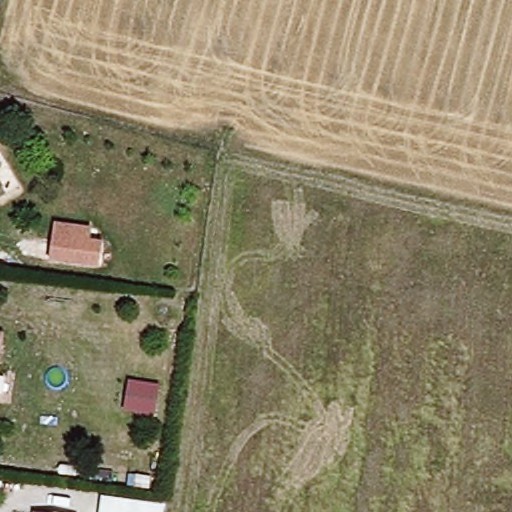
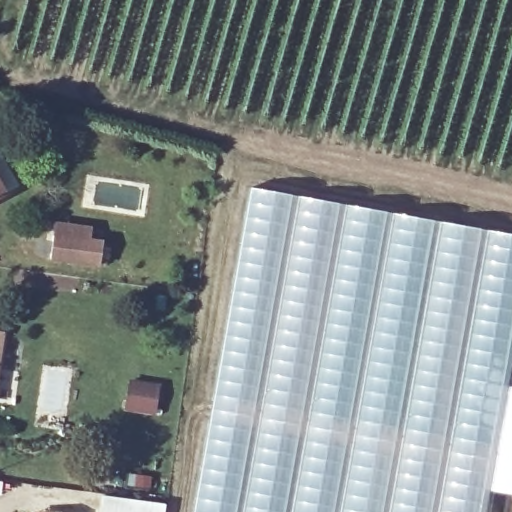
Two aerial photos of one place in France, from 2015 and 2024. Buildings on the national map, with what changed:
new [(248,187),(512,235),(512,363),(508,386),(512,386),(512,495),(490,491),(486,512),(191,512),(248,187)]
unchanged [(0,197),(0,189),(4,195),(0,197)]
unchanged [(91,227),(90,240),(102,242),(100,267),(50,260),(55,222),(91,227)]
new [(128,381),(157,385),(153,413),(125,410),(128,381)]
unchanged [(165,505),(165,512),(101,512),(103,496),(165,505)]

